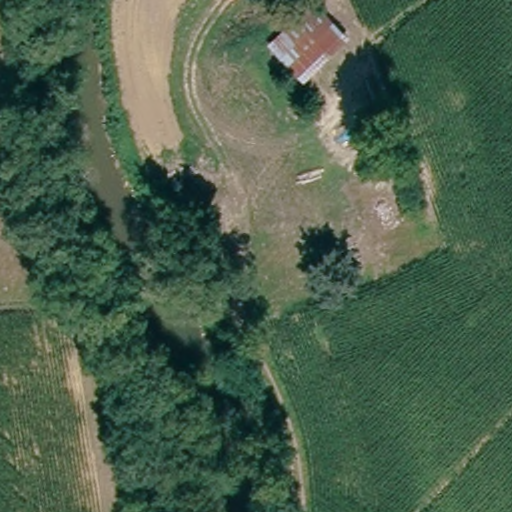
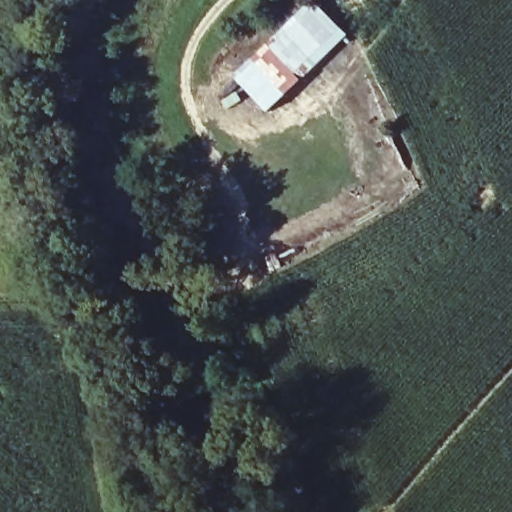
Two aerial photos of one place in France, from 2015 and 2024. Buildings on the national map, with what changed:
unchanged [(348,36),(304,80),(268,43),(314,2),(348,36)]
new [(304,80),(269,114),(235,77),(268,43),(304,80)]

